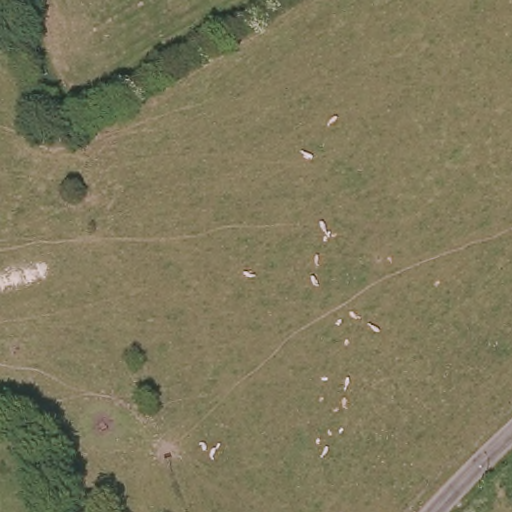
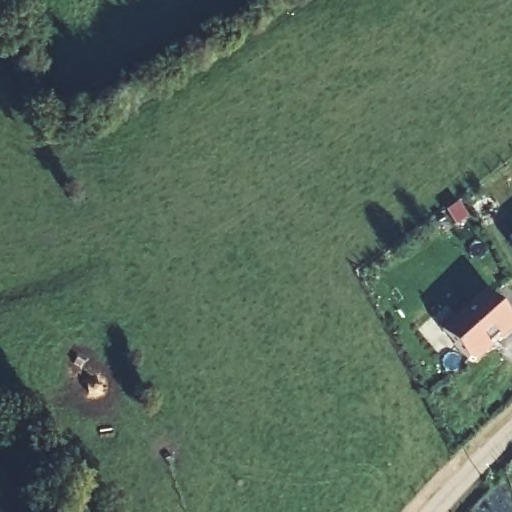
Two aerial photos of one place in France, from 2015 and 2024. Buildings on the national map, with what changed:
new [(512,320),(512,332),(479,362),(468,361),(441,329),(485,289),(512,320)]

